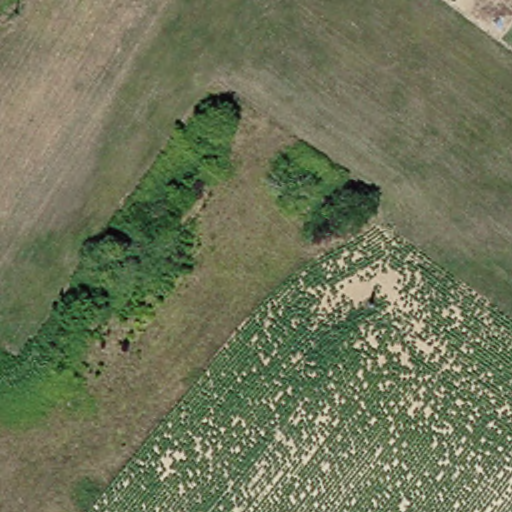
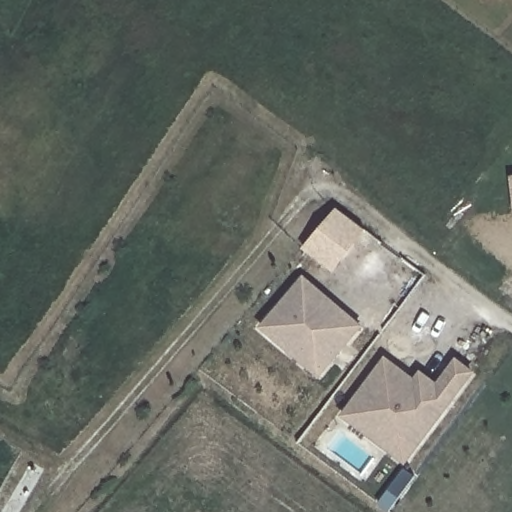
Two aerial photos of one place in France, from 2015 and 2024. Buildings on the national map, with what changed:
new [(303,250),(336,207),(366,229),(333,273),(303,250)]
new [(302,279),(361,329),(320,378),(287,351),(260,328),(272,314),(302,279)]
new [(415,381),(420,373),(437,386),(456,361),(472,372),(405,462),(385,446),(396,430),(355,399),(385,359),(415,381)]
new [(355,399),(396,430),(385,446),(343,415),(355,399)]

